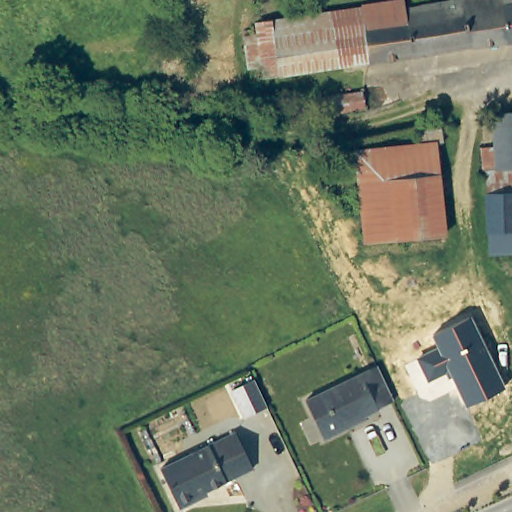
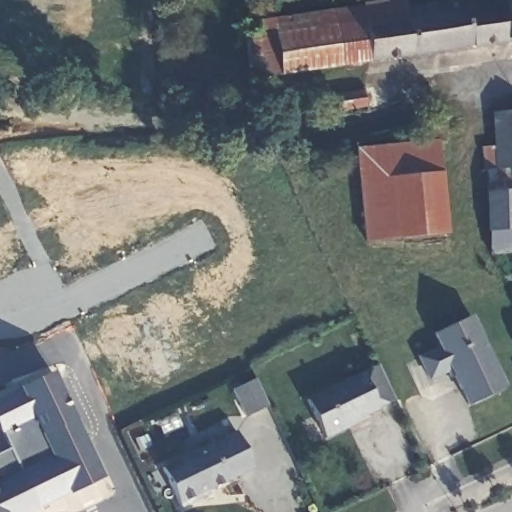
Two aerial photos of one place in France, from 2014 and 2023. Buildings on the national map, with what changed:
unchanged [(511,7),(512,7),(512,46),(482,51),(480,46),(427,56),(379,65),(378,64),(377,57),(373,33),(401,27),(399,16),(410,14),(468,4),(469,0),(510,0),(511,7)]
unchanged [(511,7),(510,0),(512,0),(512,7),(511,7)]
unchanged [(247,45),(262,42),(260,32),(408,5),(410,14),(399,16),(401,27),(373,33),(377,57),(378,64),(368,66),(268,83),(267,73),(252,75),(247,45)]
unchanged [(335,98),(334,84),(363,78),(365,78),(367,92),(360,93),(335,98)]
unchanged [(489,128),(488,109),(512,106),(512,171),(490,171),(489,128)]
unchanged [(448,238),(366,243),(358,151),(438,144),(448,238)]
unchanged [(485,258),(480,171),(490,171),(512,171),(512,258),(485,258)]
unchanged [(470,316),(505,388),(466,406),(448,370),(426,380),(415,356),(436,346),(431,334),(470,316)]
unchanged [(397,401),(354,422),(356,427),(327,440),(309,401),(380,365),(397,401)]
new [(69,491),(68,489),(37,505),(24,512),(0,512),(0,453),(9,448),(0,431),(0,398),(17,388),(51,373),(100,475),(69,491)]
unchanged [(224,387),(247,376),(250,383),(260,403),(236,414),(224,387)]
unchanged [(256,471),(181,507),(165,472),(237,436),(256,471)]

